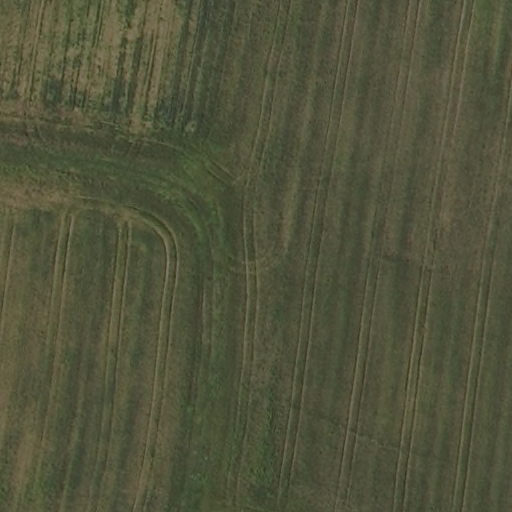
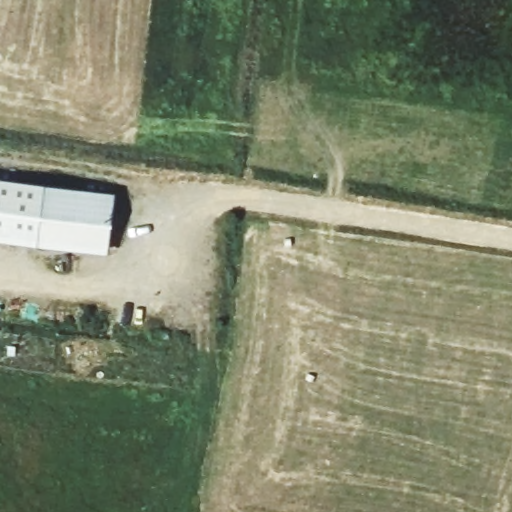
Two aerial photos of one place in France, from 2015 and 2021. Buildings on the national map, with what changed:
new [(42,191),(36,252),(0,249),(0,187),(42,191)]
new [(67,255),(36,252),(42,191),(97,196),(93,247),(92,257),(67,255)]

